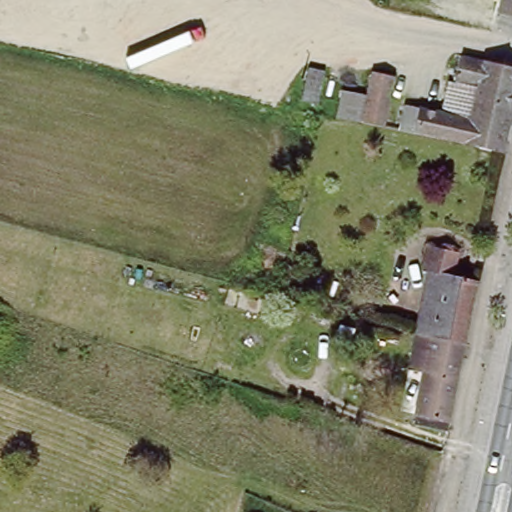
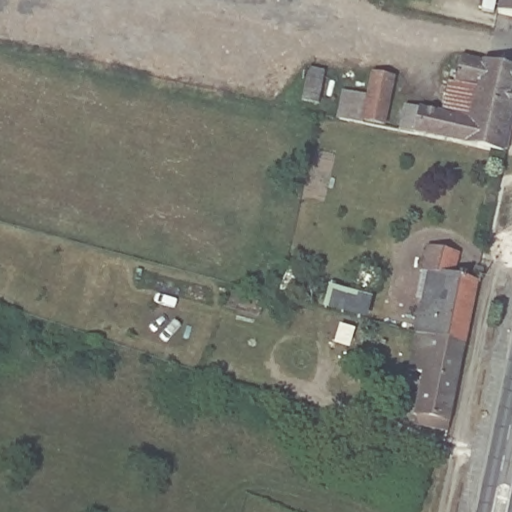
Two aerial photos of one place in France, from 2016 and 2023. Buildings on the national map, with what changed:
unchanged [(512,0),(512,12),(499,9),(500,0),(512,0)]
unchanged [(411,127),(416,103),(451,112),(462,56),(512,69),(512,128),(508,151),(411,127)]
unchanged [(329,70),(324,105),(301,100),(307,65),(329,70)]
unchanged [(376,70),(399,77),(388,129),(364,124),(376,70)]
unchanged [(339,91),(357,95),(354,121),(334,116),(339,91)]
unchanged [(416,416),(426,375),(404,368),(431,273),(423,269),(429,244),(463,252),(454,275),(482,280),(452,426),(416,416)]

